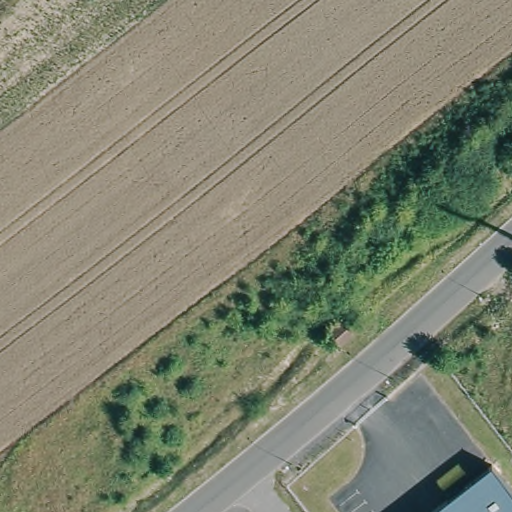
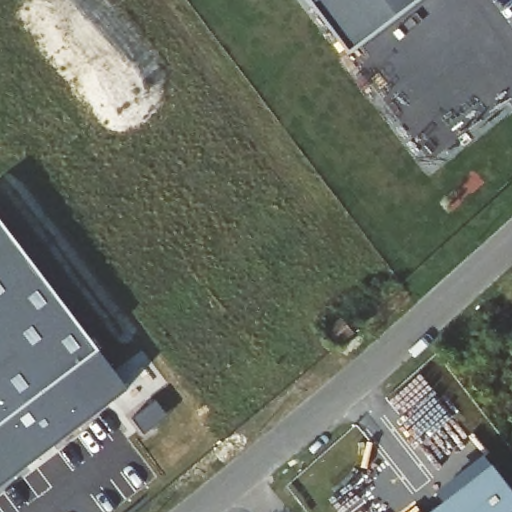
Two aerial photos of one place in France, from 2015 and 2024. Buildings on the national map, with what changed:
new [(349,51),(310,0),(415,0),(349,51)]
new [(127,387),(0,485),(0,218),(127,387)]
unchanged [(326,328),(339,317),(353,332),(339,344),(326,328)]
unchanged [(512,491),(512,512),(438,512),(494,468),(512,491)]

